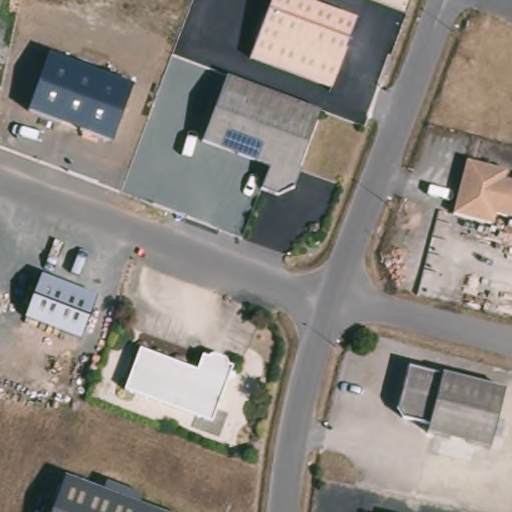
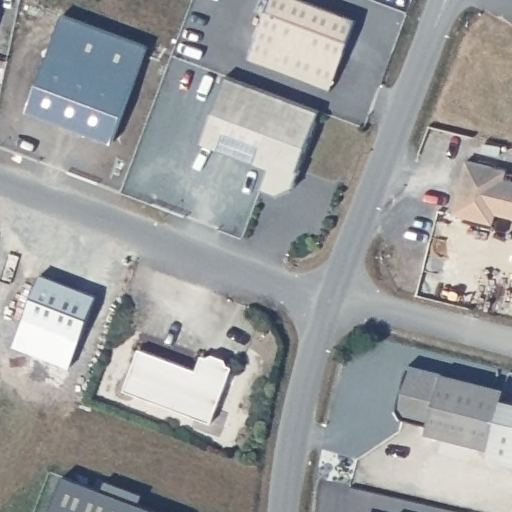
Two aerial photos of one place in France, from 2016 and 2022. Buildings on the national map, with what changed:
unchanged [(359,20),(335,87),(254,57),(276,0),(305,0),(359,20)]
new [(62,15),(147,46),(133,85),(48,53),(62,15)]
unchanged [(48,53),(133,85),(112,142),(27,110),(48,53)]
unchanged [(322,111),(296,185),(283,194),(267,189),(273,168),(205,142),(232,78),(322,111)]
unchanged [(494,226),(457,216),(469,161),(510,169),(508,177),(512,178),(512,217),(498,214),(494,226)]
unchanged [(25,319),(41,275),(98,296),(80,340),(25,319)]
new [(71,367),(14,346),(25,319),(80,340),(71,367)]
unchanged [(194,369),(199,353),(234,366),(213,422),(125,390),(140,349),(194,369)]
unchanged [(443,375),(506,393),(489,451),(427,433),(429,426),(402,418),(397,409),(410,366),(443,375)]
unchanged [(106,489),(109,482),(141,494),(138,502),(164,512),(53,512),(67,476),(106,489)]

